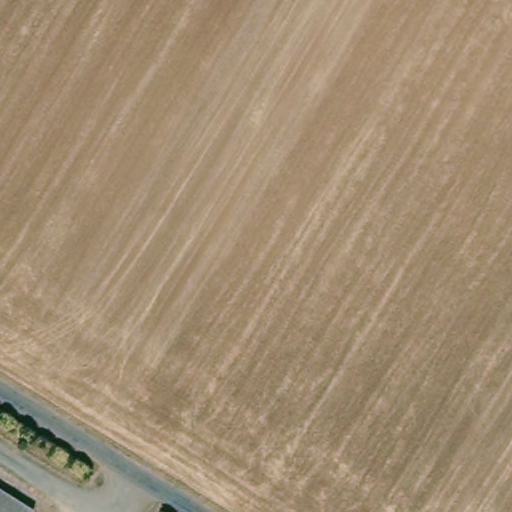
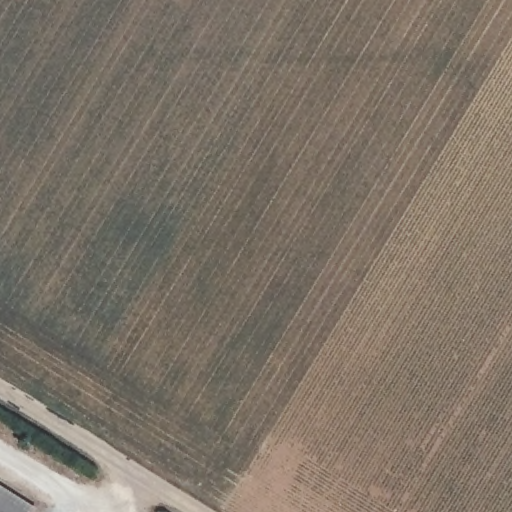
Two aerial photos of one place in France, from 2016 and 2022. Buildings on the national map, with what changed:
unchanged [(32,512),(0,512),(0,488),(33,509),(32,512)]

